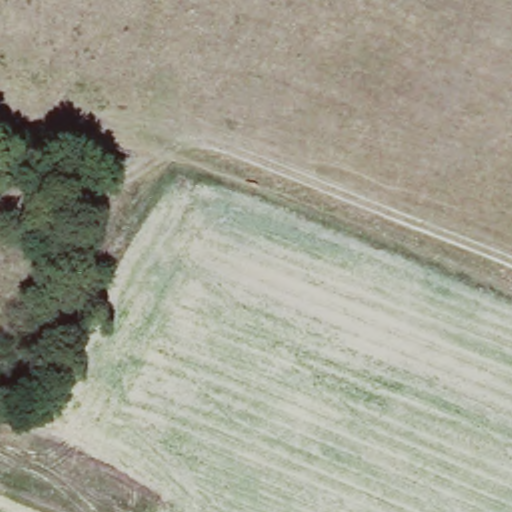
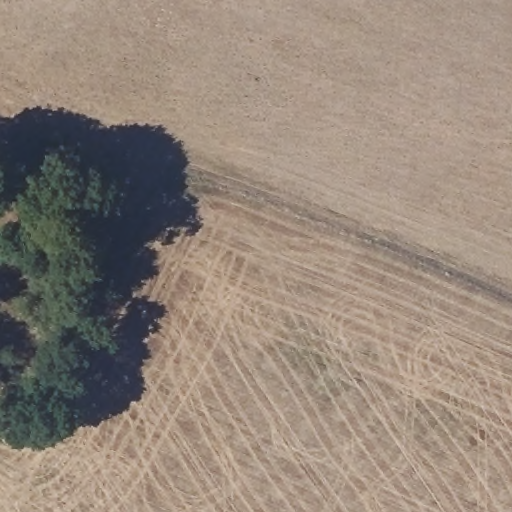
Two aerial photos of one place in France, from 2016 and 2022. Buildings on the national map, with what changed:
[]

